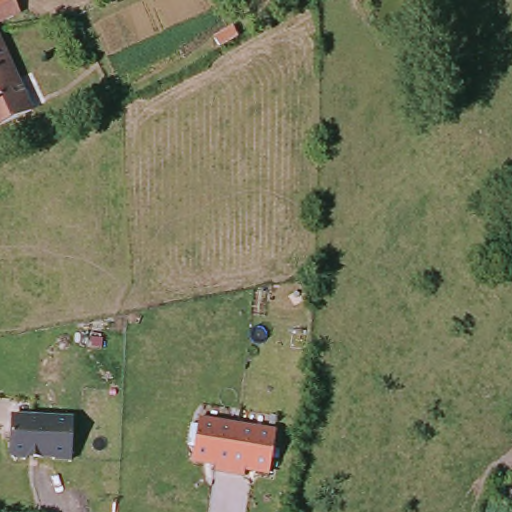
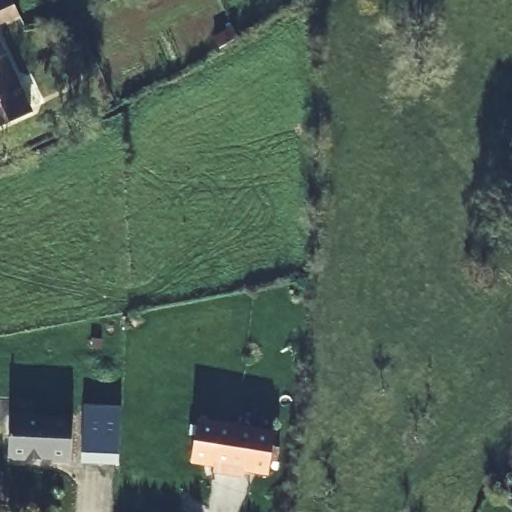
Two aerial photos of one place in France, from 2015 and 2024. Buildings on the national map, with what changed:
unchanged [(0,0),(18,0),(19,2),(0,12),(0,0)]
unchanged [(0,133),(0,41),(33,115),(0,133)]
new [(120,410),(117,456),(78,456),(82,407),(120,410)]
unchanged [(72,462),(55,462),(55,459),(15,459),(10,452),(11,415),(73,417),(72,462)]
unchanged [(203,415),(271,430),(261,471),(240,466),(239,472),(210,465),(211,460),(194,456),(203,415)]

